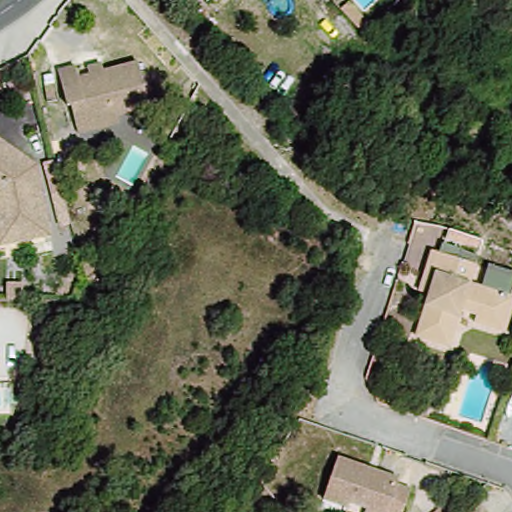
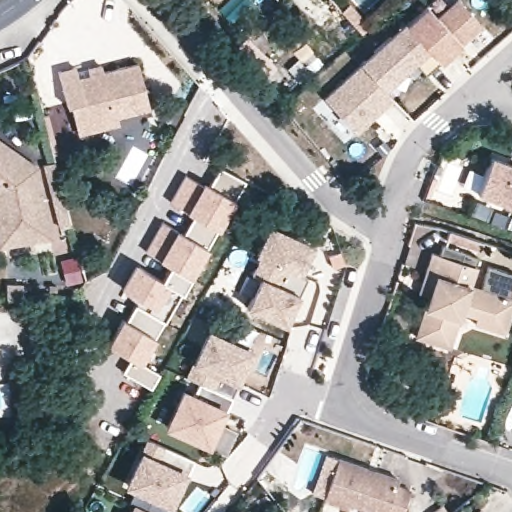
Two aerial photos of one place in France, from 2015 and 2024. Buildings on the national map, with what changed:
unchanged [(205,0),(207,0),(206,1),(205,0)]
new [(443,16),(461,0),(466,0),(487,24),(447,60),(413,23),(433,5),(443,16)]
new [(411,21),(413,23),(447,60),(432,73),(420,59),(389,86),(368,62),(367,61),(411,21)]
new [(252,36),(281,67),(270,77),(242,46),(252,36)]
new [(368,62),(389,86),(399,97),(362,131),(331,96),(368,62)]
unchanged [(81,132),(79,123),(76,107),(72,105),(67,70),(83,67),(85,79),(95,78),(93,68),(108,66),(109,73),(131,70),(140,112),(120,116),(121,124),(81,132)]
unchanged [(9,247),(0,196),(0,143),(39,170),(50,241),(9,247)]
new [(512,161),(512,202),(482,191),(496,155),(512,161)]
new [(169,266),(146,252),(164,221),(184,234),(194,215),(171,202),(186,175),(208,188),(220,167),(245,181),(190,277),(169,266)]
unchanged [(0,249),(0,196),(9,247),(0,249)]
new [(269,224),(320,247),(307,276),(255,252),(269,224)]
unchanged [(502,327),(473,320),(475,312),(459,308),(448,343),(415,333),(428,291),(416,287),(419,276),(426,249),(472,262),(467,279),(501,290),(512,295),(502,327)]
new [(257,278),(262,280),(271,260),(312,279),(313,279),(304,298),(299,297),(284,331),(242,312),(257,278)]
new [(151,388),(123,372),(131,357),(107,345),(122,317),(127,321),(138,302),(128,296),(130,293),(121,288),(134,263),(162,279),(169,266),(190,277),(182,291),(170,284),(156,308),(152,306),(148,312),(164,320),(154,337),(156,338),(141,362),(160,373),(151,388)]
new [(205,328),(252,351),(238,382),(245,386),(239,399),(191,377),(195,369),(188,366),(205,328)]
new [(181,387),(194,392),(199,381),(233,396),(227,407),(210,447),(163,427),(181,387)]
new [(142,451),(144,452),(150,439),(201,462),(196,475),(191,473),(176,505),(127,483),(142,451)]
unchanged [(364,506),(346,500),(345,505),(322,497),(337,456),(397,476),(395,483),(409,488),(400,512),(362,512),(364,506)]
new [(136,504),(140,506),(154,512),(132,512),(136,504)]
unchanged [(483,508),(486,512),(479,512),(483,508)]

